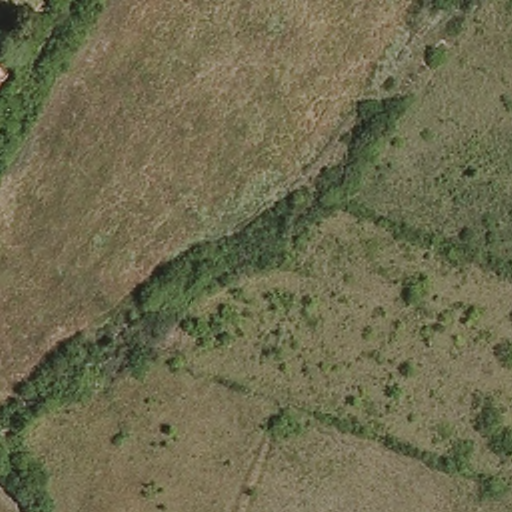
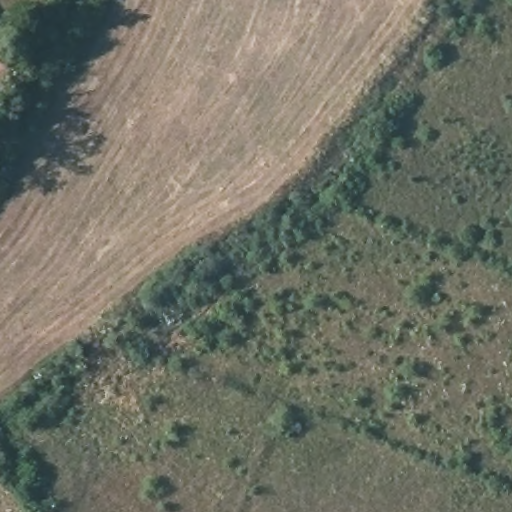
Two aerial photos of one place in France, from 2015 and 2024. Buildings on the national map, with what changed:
unchanged [(11,74),(0,89),(0,66),(11,74)]

